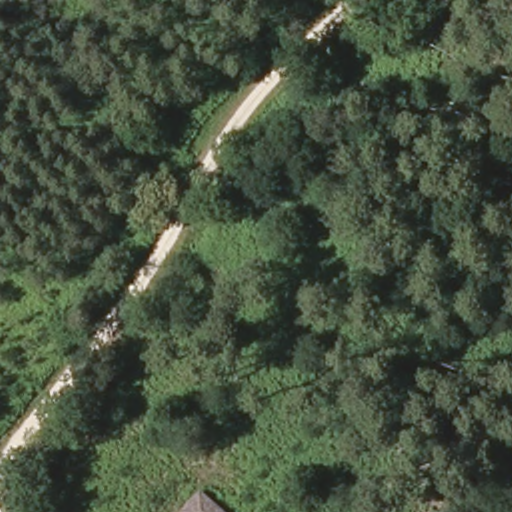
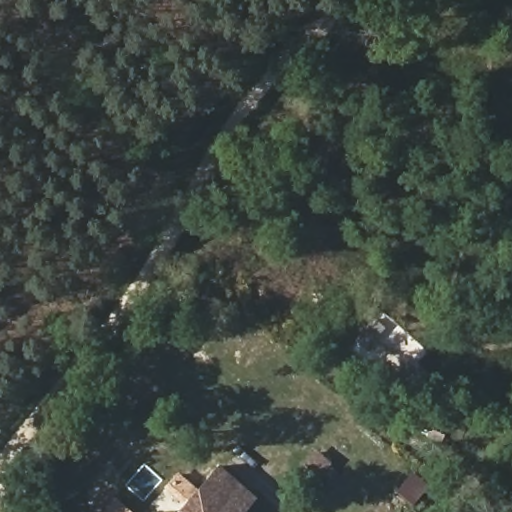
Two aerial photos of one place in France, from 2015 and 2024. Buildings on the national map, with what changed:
new [(218,463),(255,497),(242,512),(178,512),(218,463)]
demolished [(193,497),(208,512),(178,512),(193,497)]

